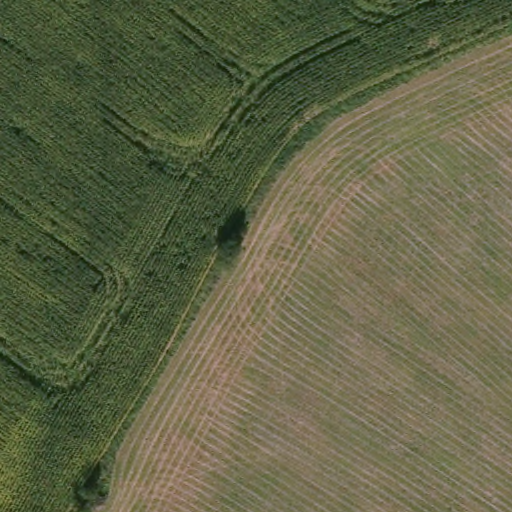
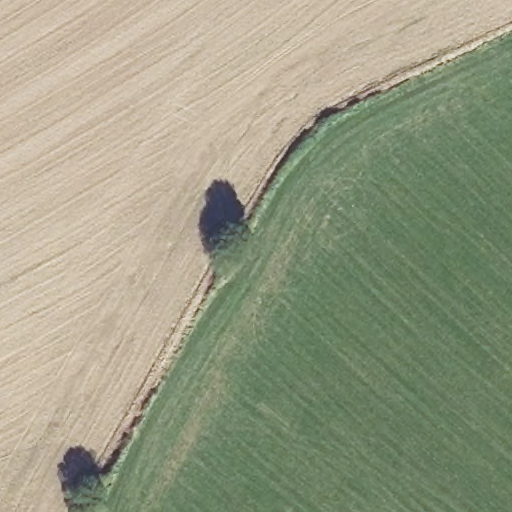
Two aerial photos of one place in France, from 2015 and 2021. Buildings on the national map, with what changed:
[]

